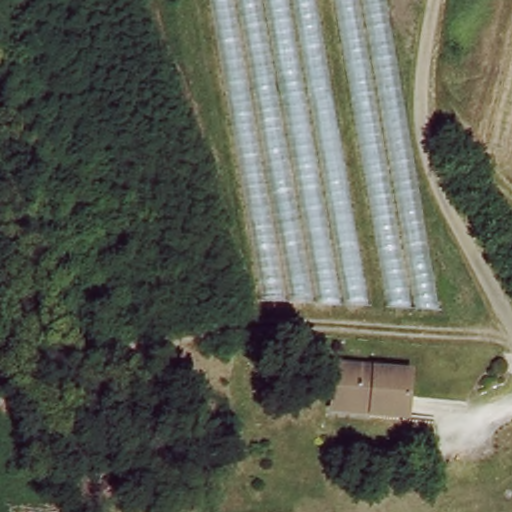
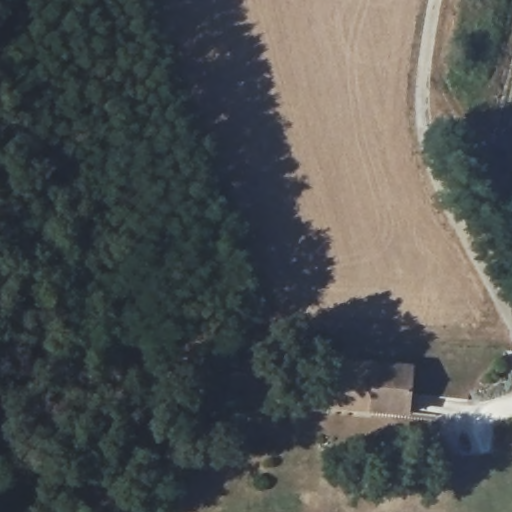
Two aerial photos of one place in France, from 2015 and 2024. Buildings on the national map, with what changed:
demolished [(373,302),(268,297),(215,0),(320,0),(373,302)]
demolished [(444,307),(395,307),(342,0),(390,0),(444,307)]
new [(490,146),(512,55),(512,153),(490,146)]
unchanged [(333,407),(334,393),(337,362),(411,369),(407,414),(372,411),(357,409),(333,407)]

